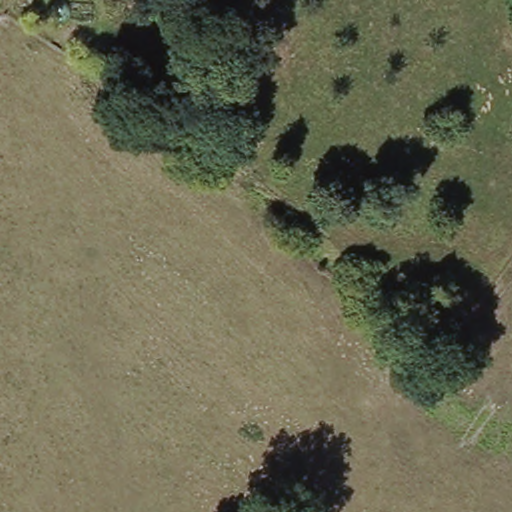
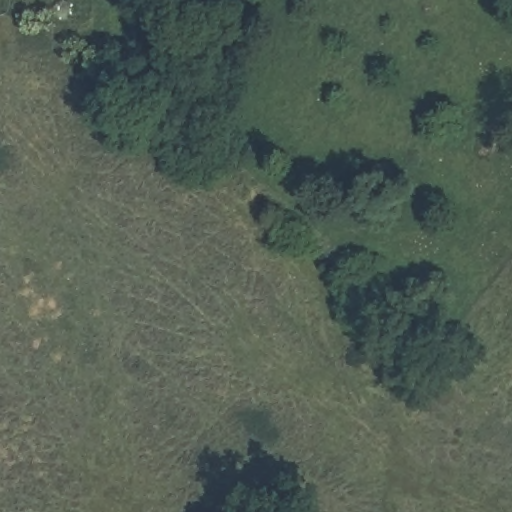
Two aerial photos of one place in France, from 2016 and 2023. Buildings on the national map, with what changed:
[]

